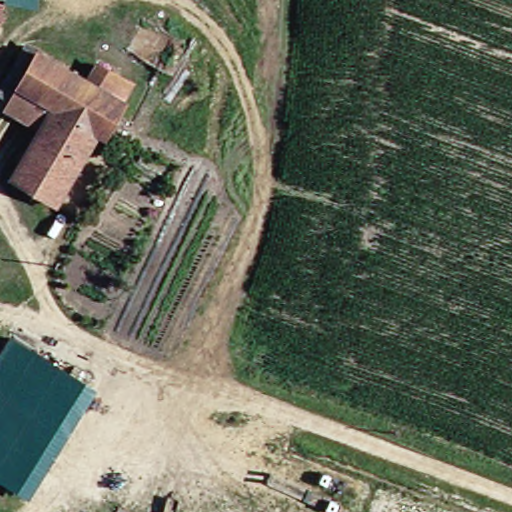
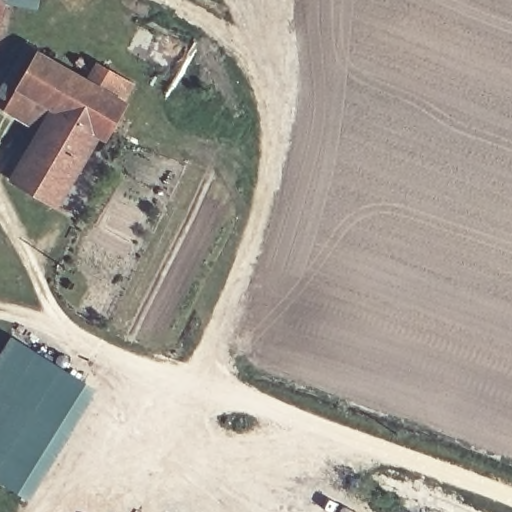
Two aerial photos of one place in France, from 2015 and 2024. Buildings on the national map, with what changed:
unchanged [(0,2),(0,0),(33,0),(31,8),(0,2)]
unchanged [(90,63),(111,72),(101,94),(118,102),(99,143),(91,139),(58,212),(14,192),(49,114),(12,100),(25,63),(80,84),(90,63)]
unchanged [(14,503),(0,493),(0,344),(3,339),(34,358),(84,389),(14,503)]

